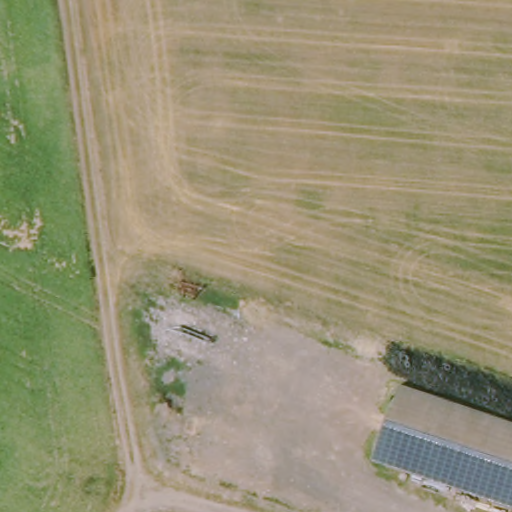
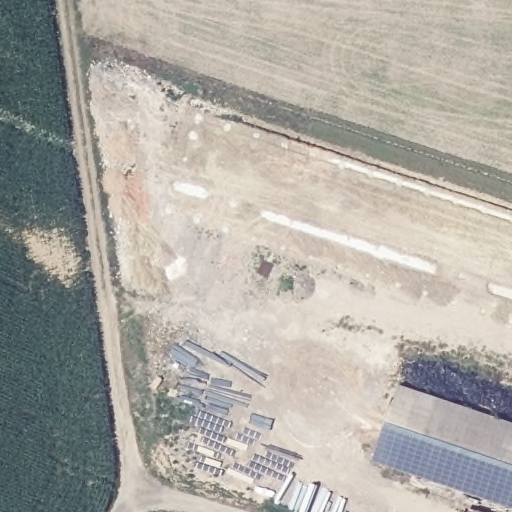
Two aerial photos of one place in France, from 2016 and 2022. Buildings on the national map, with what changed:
unchanged [(512,430),(512,512),(510,512),(367,465),(392,392),(512,430)]

